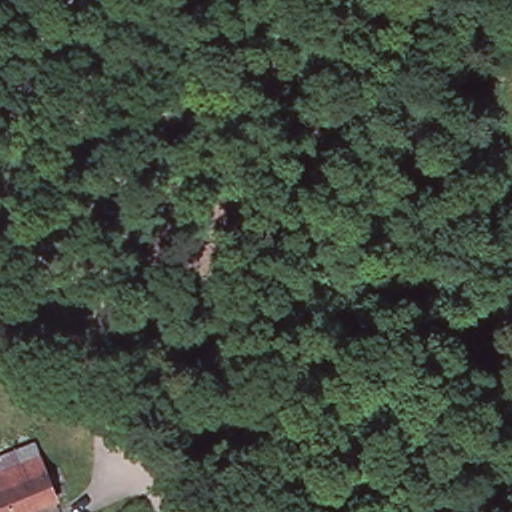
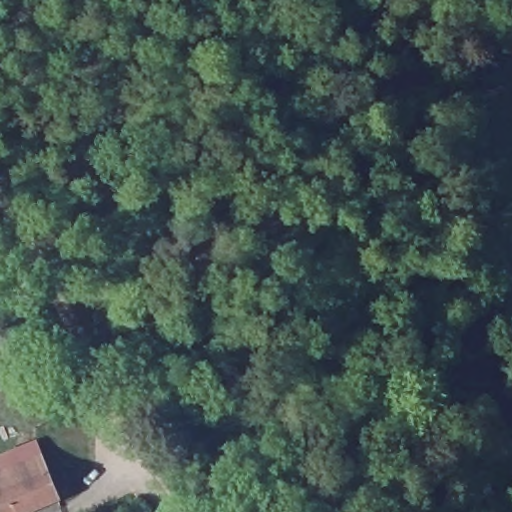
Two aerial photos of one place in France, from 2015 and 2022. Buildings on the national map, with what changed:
unchanged [(41,447),(44,467),(0,474),(0,454),(41,447)]
unchanged [(51,512),(0,512),(0,474),(44,467),(51,512)]

